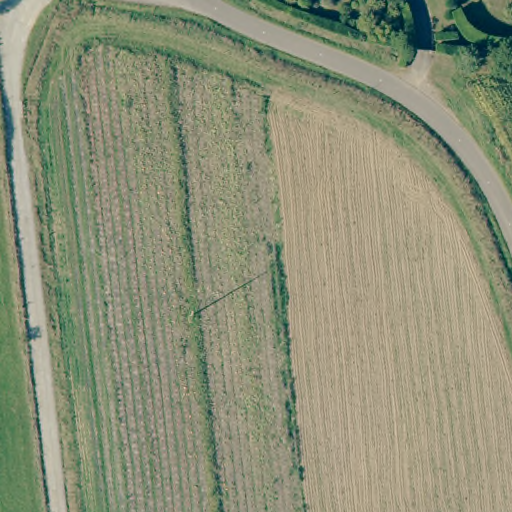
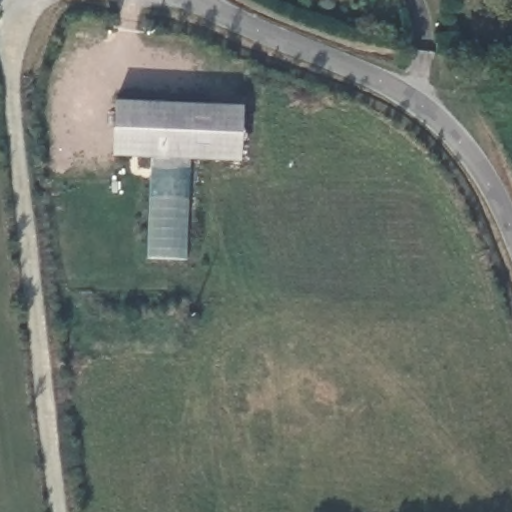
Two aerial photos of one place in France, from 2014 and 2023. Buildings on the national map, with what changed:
new [(114,101),(243,106),(241,161),(190,160),(148,158),(111,157),(114,101)]
new [(148,158),(190,160),(187,261),(146,259),(148,158)]

